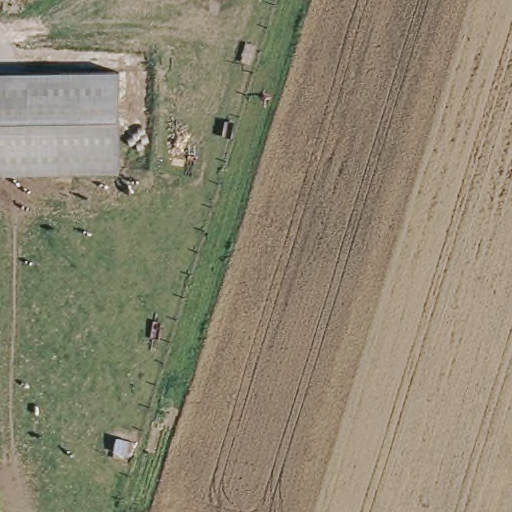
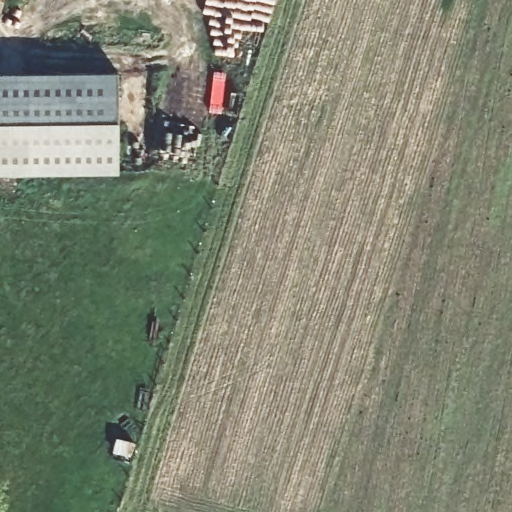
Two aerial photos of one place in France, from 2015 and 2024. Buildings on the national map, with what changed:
unchanged [(0,176),(0,75),(118,73),(116,174),(0,176)]

